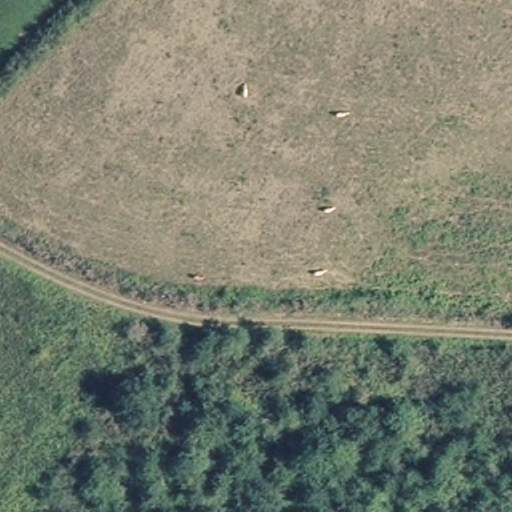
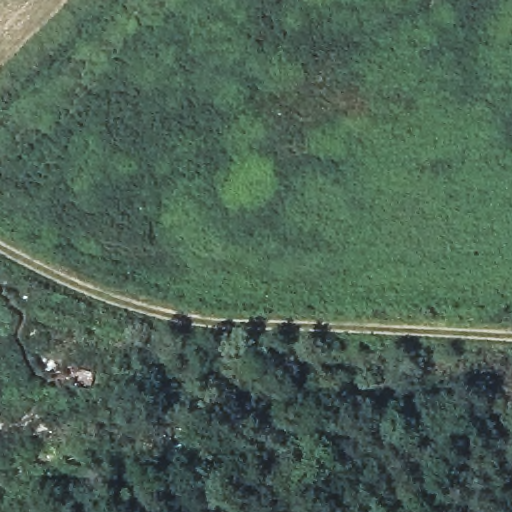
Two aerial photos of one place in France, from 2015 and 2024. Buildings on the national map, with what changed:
[]

